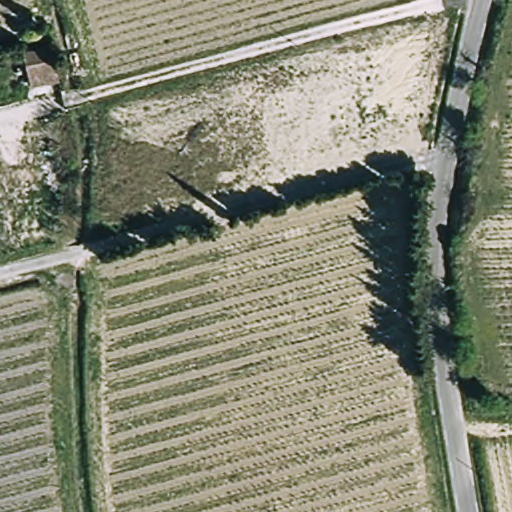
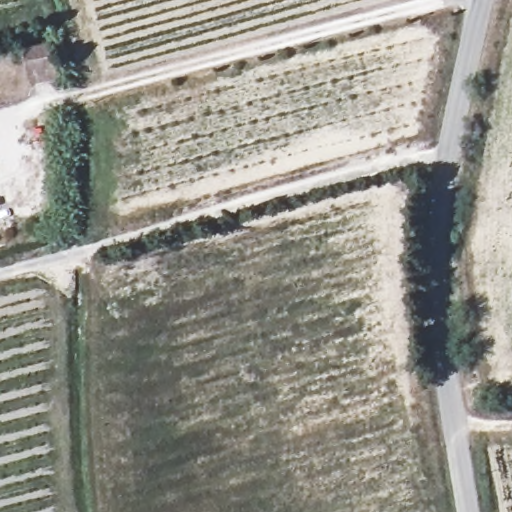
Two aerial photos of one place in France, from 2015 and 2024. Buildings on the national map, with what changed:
unchanged [(59,75),(30,81),(23,46),(51,40),(59,75)]

